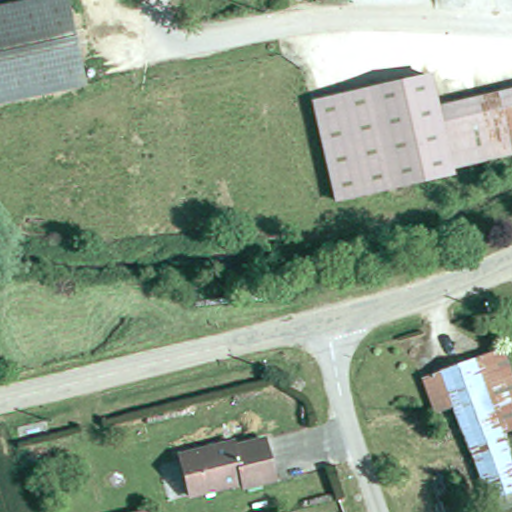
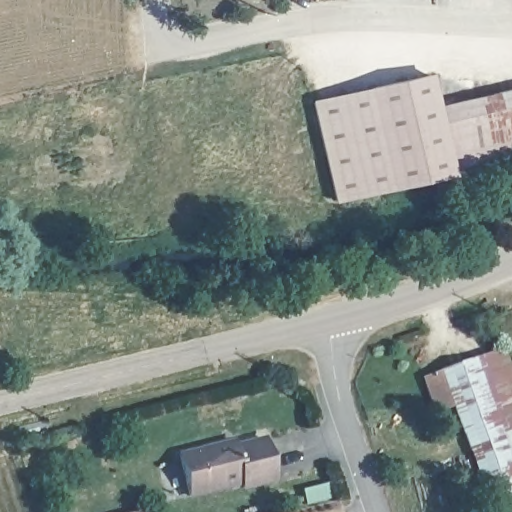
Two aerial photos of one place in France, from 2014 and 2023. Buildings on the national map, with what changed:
demolished [(79,14),(84,80),(0,87),(0,21),(79,14)]
unchanged [(489,92),(493,108),(512,104),(512,139),(501,141),(504,153),(443,167),(444,172),(384,186),(361,88),(421,75),(428,105),(489,92)]
unchanged [(361,88),(384,186),(331,200),(311,100),(361,88)]
unchanged [(487,393),(512,467),(512,509),(502,512),(492,512),(443,370),(494,352),(506,386),(487,393)]
unchanged [(234,445),(264,436),(276,477),(243,485),(241,476),(188,490),(178,449),(231,436),(234,445)]
unchanged [(294,512),(292,512),(294,511),(294,512)]

